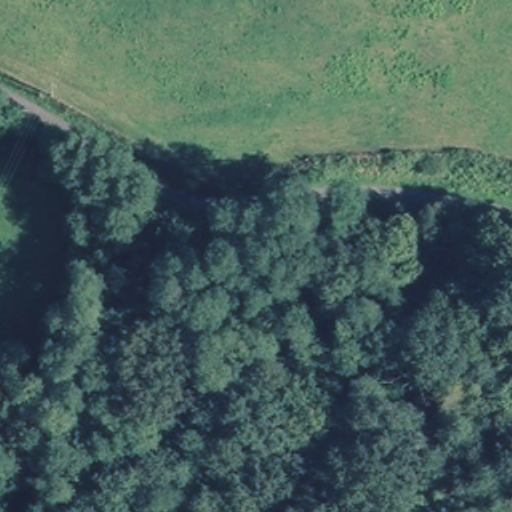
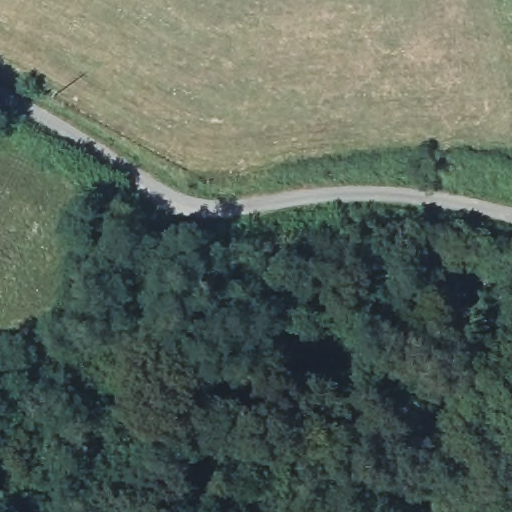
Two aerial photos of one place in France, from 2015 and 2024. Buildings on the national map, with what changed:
[]

